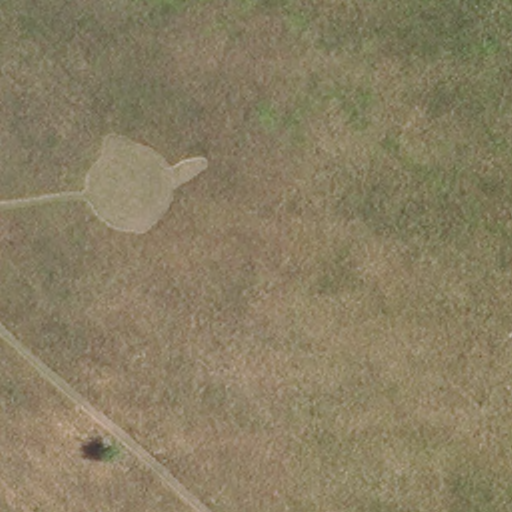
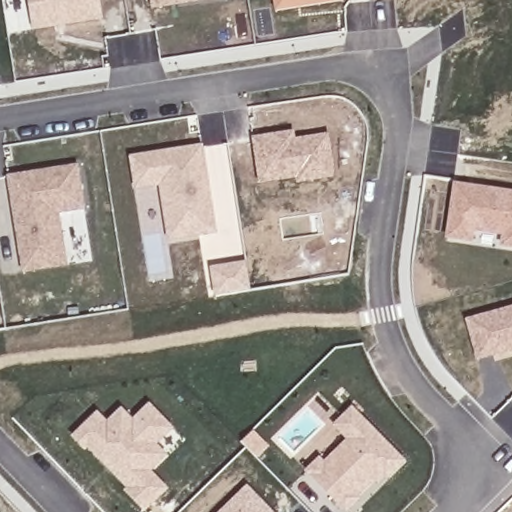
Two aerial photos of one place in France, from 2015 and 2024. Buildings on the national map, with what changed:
new [(31,28),(27,0),(98,0),(101,18),(31,28)]
new [(150,0),(211,0),(151,10),(150,0)]
new [(274,0),(341,0),(276,11),(274,0)]
new [(296,184),(295,179),(259,185),(251,136),(294,130),(295,138),(328,133),(334,178),(296,184)]
new [(129,156),(203,144),(217,234),(167,243),(158,187),(135,191),(129,156)]
new [(78,164),(85,210),(59,215),(67,266),(23,274),(6,176),(78,164)]
new [(445,239),(452,184),(512,192),(512,249),(502,248),(504,238),(470,233),(468,242),(445,239)]
new [(464,319),(512,306),(512,352),(476,362),(464,319)]
new [(97,412),(107,421),(121,407),(132,418),(149,403),(173,429),(158,445),(168,455),(151,471),(168,489),(146,512),(145,512),(123,491),(125,489),(87,449),(85,451),(71,436),(97,412)]
new [(319,457),(324,461),(345,439),(332,426),(351,407),(405,461),(387,480),(385,478),(378,485),(374,482),(359,498),(360,500),(348,512),(345,512),(304,471),(319,457)]
new [(246,485),(273,512),(219,512),(246,485)]

